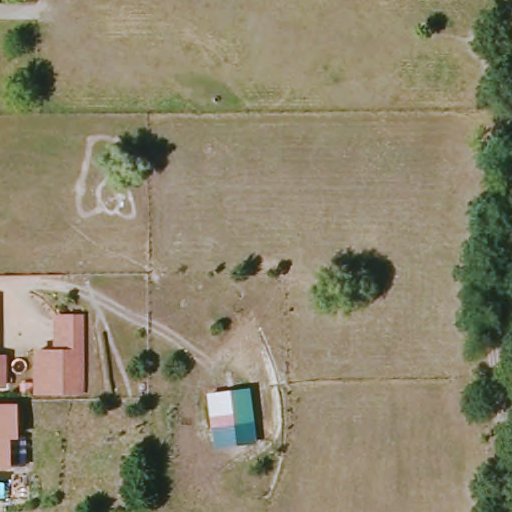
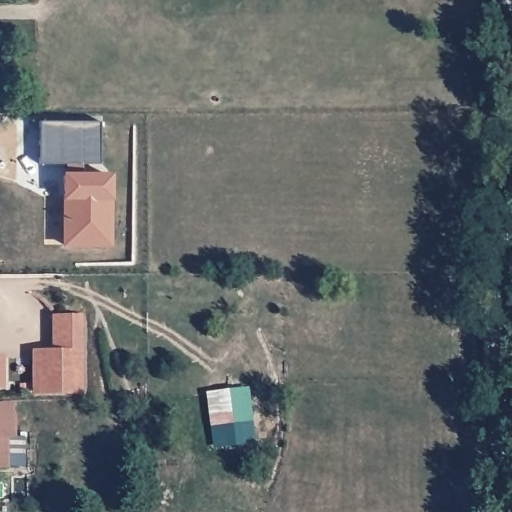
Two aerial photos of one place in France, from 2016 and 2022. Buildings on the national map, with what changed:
new [(97,121),(97,165),(79,165),(79,174),(109,173),(109,249),(58,249),(58,174),(62,174),(62,165),(35,165),(34,121),(97,121)]
unchanged [(89,393),(42,395),(43,353),(62,352),(62,323),(62,318),(87,318),(87,327),(89,393)]
unchanged [(10,356),(9,386),(0,386),(0,356),(10,356)]
unchanged [(236,390),(239,427),(212,430),(207,392),(236,390)]
unchanged [(12,438),(12,467),(0,467),(0,408),(18,408),(19,427),(19,437),(12,438)]

